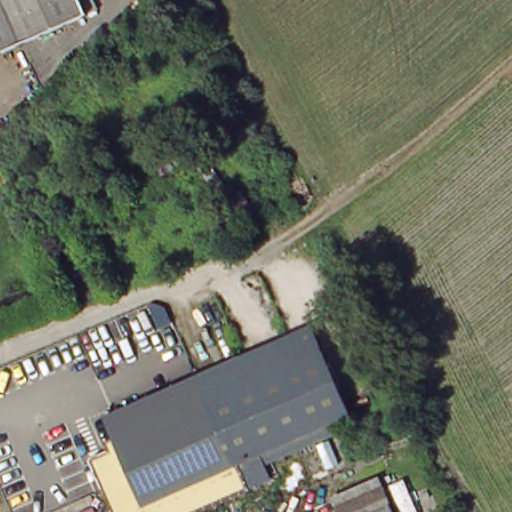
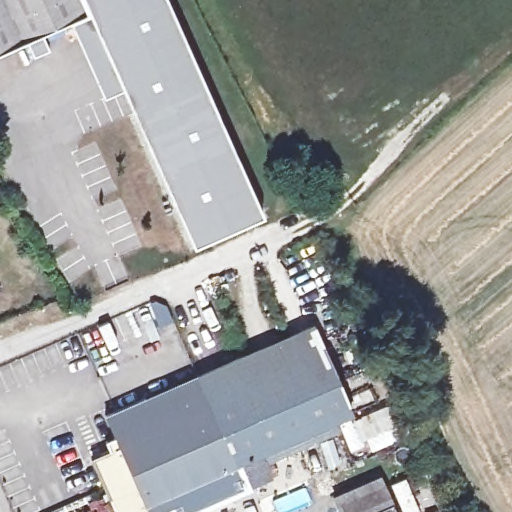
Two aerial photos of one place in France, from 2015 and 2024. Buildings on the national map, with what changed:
unchanged [(93,10),(0,51),(0,0),(88,0),(93,10)]
new [(88,12),(93,10),(88,0),(163,0),(261,214),(192,246),(121,86),(102,96),(70,21),(88,12)]
demolished [(262,214),(235,233),(217,208),(245,189),(262,214)]
unchanged [(314,327),(325,351),(257,381),(244,355),(314,327)]
unchanged [(355,415),(262,456),(270,478),(190,512),(120,512),(105,478),(94,460),(112,452),(107,441),(120,435),(110,409),(244,355),(257,381),(325,351),(327,354),(355,415)]
unchanged [(382,475),(395,503),(373,512),(342,512),(335,496),(382,475)]
unchanged [(398,512),(373,512),(395,503),(398,512)]

